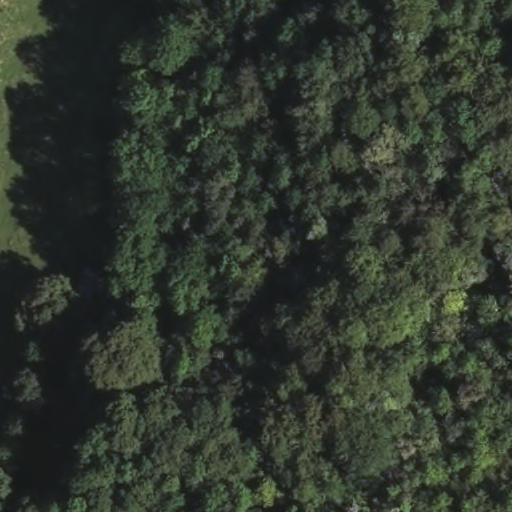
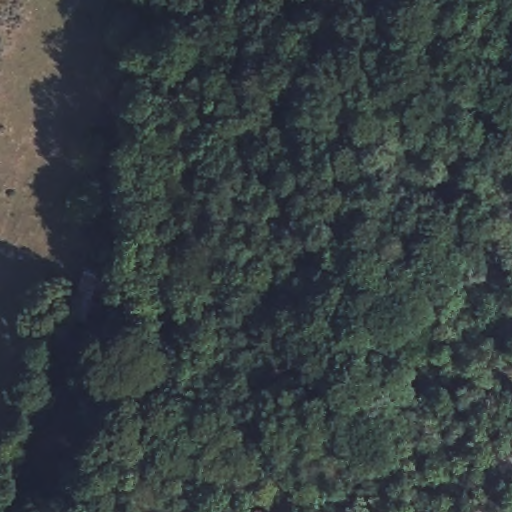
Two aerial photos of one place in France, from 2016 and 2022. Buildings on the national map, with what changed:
unchanged [(102,282),(99,305),(73,302),(78,266),(104,270),(102,282)]

